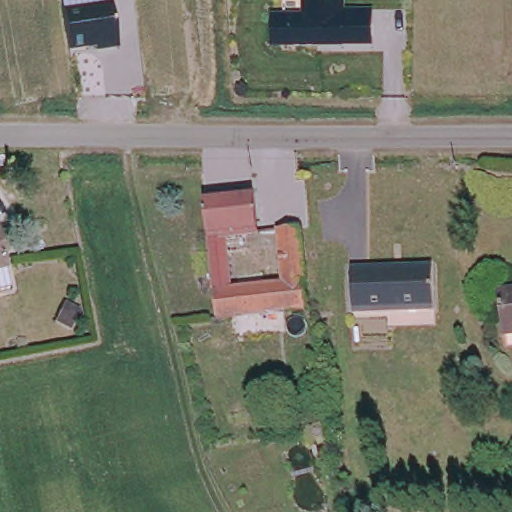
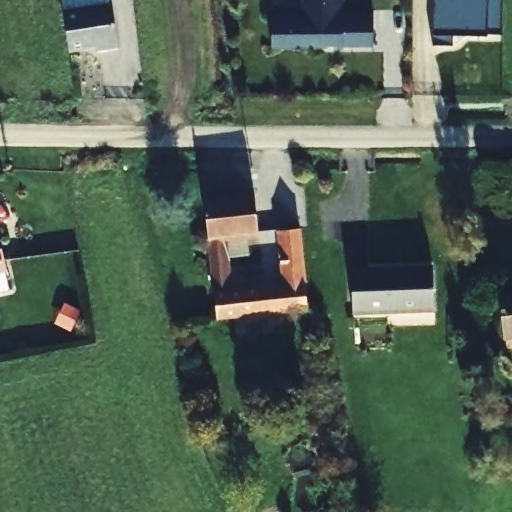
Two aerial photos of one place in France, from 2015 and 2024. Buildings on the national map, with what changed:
unchanged [(373,47),(271,49),(271,13),(301,13),(301,0),(346,0),(345,8),(373,8),(373,47)]
new [(497,2),(496,41),(434,34),(437,0),(471,0),(497,2)]
unchanged [(120,48),(95,51),(95,49),(68,53),(63,10),(112,3),(120,48)]
unchanged [(253,197),(256,235),(222,238),(228,292),(236,292),(236,277),(260,276),(261,291),(281,289),(276,233),(298,231),(305,312),(282,314),(215,321),(203,202),(253,197)]
unchanged [(11,294),(0,298),(0,244),(11,294)]
unchanged [(435,267),(433,311),(354,308),(356,265),(435,267)]
unchanged [(500,299),(512,298),(512,335),(503,336),(500,299)]

